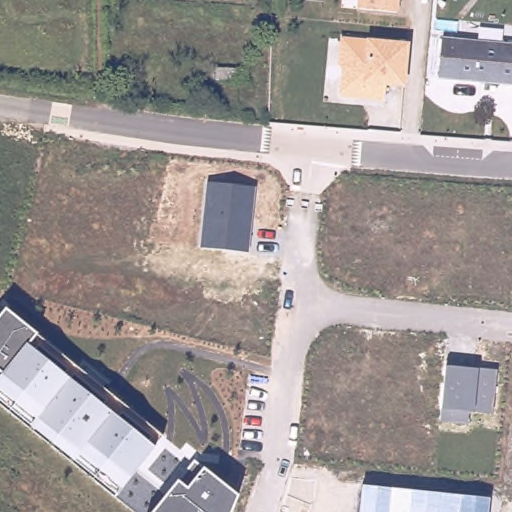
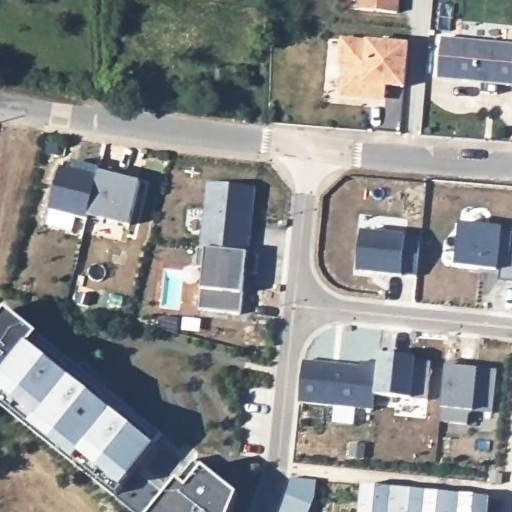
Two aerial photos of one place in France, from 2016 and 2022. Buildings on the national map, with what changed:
unchanged [(395,12),(356,9),(357,0),(396,0),(395,12)]
unchanged [(440,78),(444,38),(512,45),(512,84),(440,78)]
unchanged [(406,46),(403,89),(387,88),(386,98),(365,96),(359,101),(341,99),(343,73),(340,69),(341,42),(406,46)]
new [(70,171),(72,163),(82,166),(99,170),(87,215),(85,220),(49,211),(60,169),(70,171)]
new [(99,170),(99,168),(115,172),(114,177),(139,183),(128,226),(87,215),(99,170)]
unchanged [(198,249),(206,183),(254,186),(248,251),(198,249)]
new [(456,223),(508,228),(505,254),(512,255),(512,282),(495,280),(495,270),(452,266),(456,223)]
new [(357,231),(402,236),(398,275),(353,271),(357,231)]
new [(248,251),(256,252),(255,272),(245,272),(242,294),(240,312),(200,309),(201,291),(205,249),(248,251)]
unchanged [(122,489),(80,456),(74,464),(30,429),(36,420),(0,390),(0,377),(3,373),(0,371),(0,318),(10,309),(36,334),(161,436),(157,448),(122,489)]
new [(377,363),(378,354),(415,357),(415,361),(430,362),(426,401),(411,399),(374,396),(377,363)]
new [(301,361),(359,366),(360,361),(377,363),(372,409),(298,402),(301,361)]
unchanged [(490,412),(472,411),(470,424),(439,421),(440,408),(443,366),(477,369),(495,371),(490,412)]
unchanged [(187,489),(204,466),(238,497),(231,512),(155,512),(178,482),(187,489)]
new [(315,501),(310,512),(280,512),(290,477),(317,480),(315,501)]
unchanged [(489,497),(488,512),(360,512),(360,485),(489,497)]

